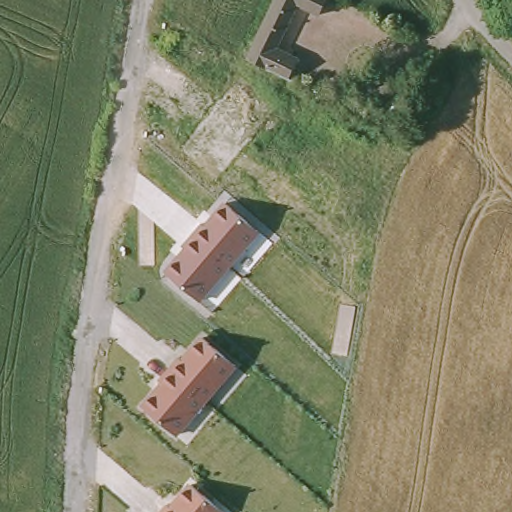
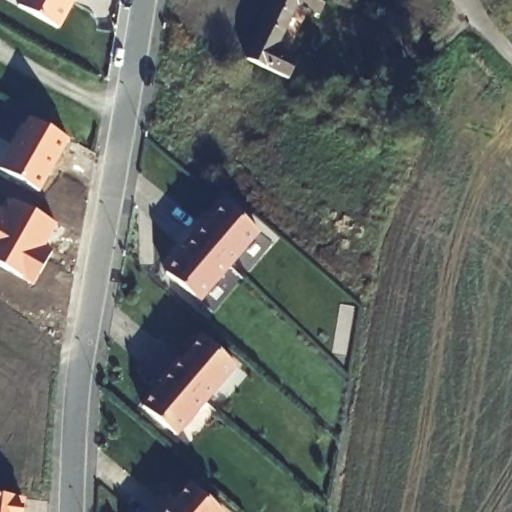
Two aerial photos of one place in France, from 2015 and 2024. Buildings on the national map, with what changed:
new [(74,0),(59,28),(20,6),(23,0),(74,0)]
unchanged [(266,60),(247,50),(270,0),(328,0),(321,14),(296,1),(274,45),(300,58),(292,74),(266,60)]
new [(0,169),(0,167),(30,117),(70,141),(40,192),(0,169)]
new [(13,200),(57,226),(46,247),(53,251),(35,286),(0,265),(0,209),(6,212),(13,200)]
unchanged [(225,202),(260,232),(200,302),(164,271),(185,247),(182,246),(202,222),(205,225),(225,202)]
unchanged [(201,337),(236,368),(177,437),(142,405),(160,383),(157,381),(178,356),(182,358),(201,337)]
unchanged [(190,482),(223,512),(159,512),(167,503),(170,505),(190,482)]
new [(0,495),(23,497),(21,512),(0,512),(0,495)]

